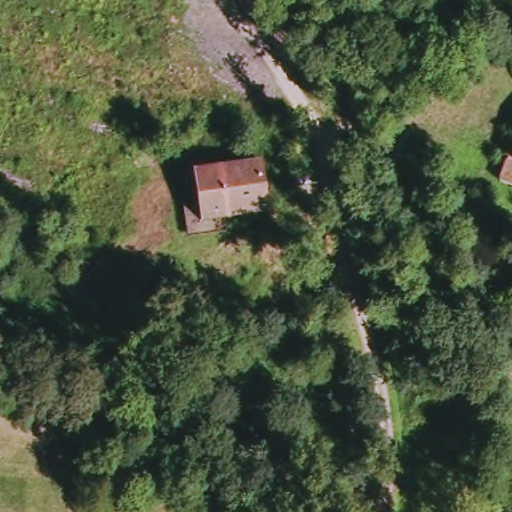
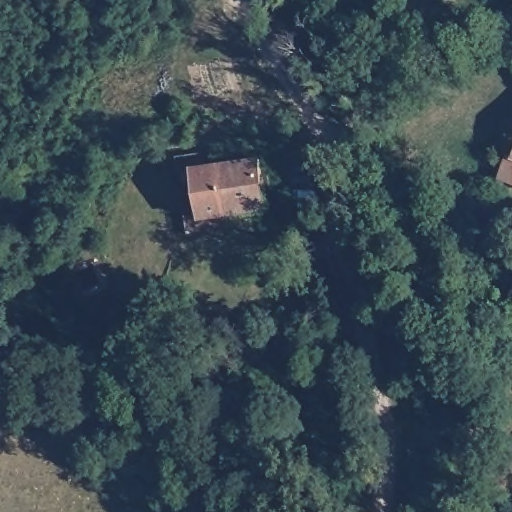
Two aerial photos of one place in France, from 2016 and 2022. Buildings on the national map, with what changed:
unchanged [(266,159),(273,209),(205,221),(198,172),(266,159)]
unchanged [(511,188),(504,188),(504,160),(512,160),(512,188),(511,188)]

